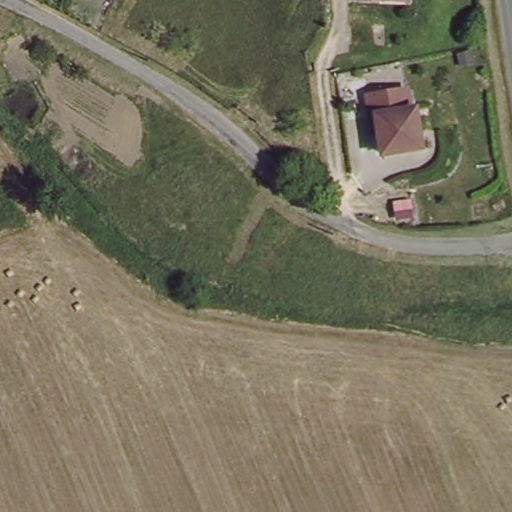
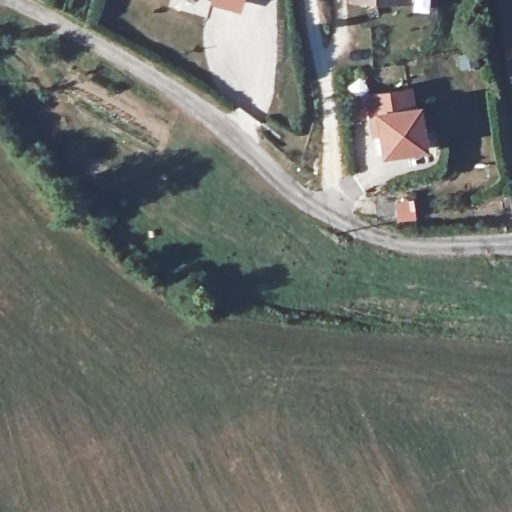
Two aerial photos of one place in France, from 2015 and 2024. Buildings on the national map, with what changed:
new [(237,12),(207,3),(208,0),(240,0),(237,12)]
unchanged [(404,110),(407,109),(416,145),(380,152),(371,119),(365,120),(361,100),(399,93),(404,110)]

